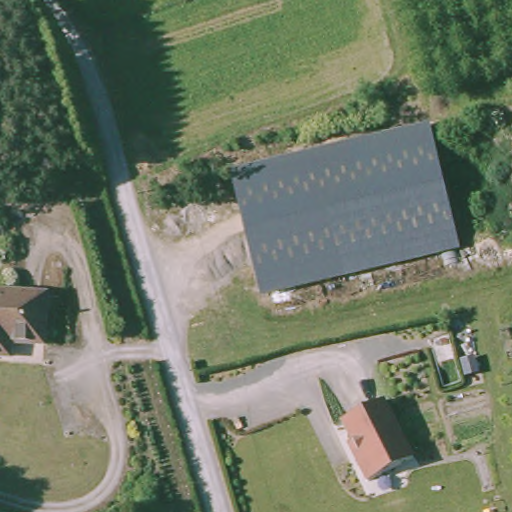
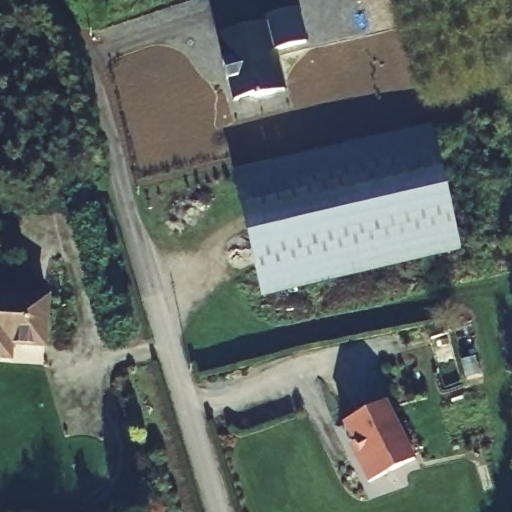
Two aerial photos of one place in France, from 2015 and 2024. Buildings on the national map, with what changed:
new [(274,94),(255,99),(255,96),(235,101),(229,79),(227,80),(222,63),(225,62),(218,35),(265,23),(264,17),(297,9),(306,43),(274,51),(282,81),(284,91),(274,94)]
unchanged [(456,252),(263,297),(230,176),(427,129),(456,252)]
unchanged [(43,354),(22,353),(22,347),(10,346),(9,365),(0,364),(0,298),(47,302),(43,354)]
unchanged [(411,460),(366,482),(354,458),(359,456),(341,422),(381,401),(411,460)]

